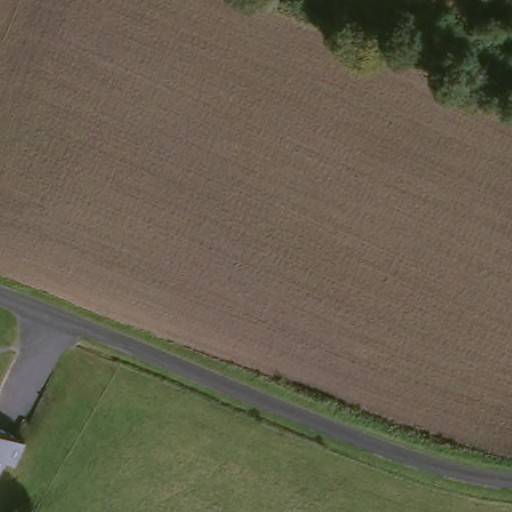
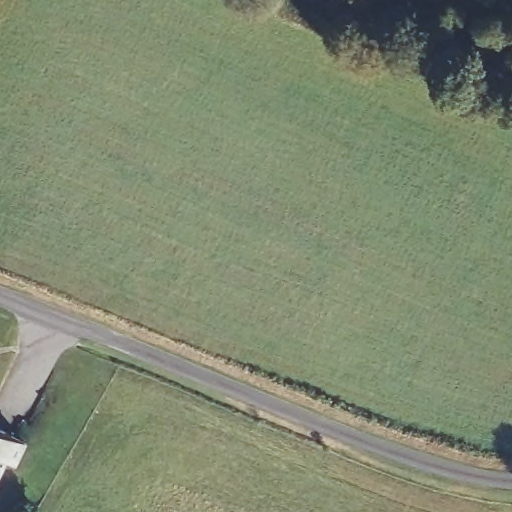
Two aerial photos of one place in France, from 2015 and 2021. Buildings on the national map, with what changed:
unchanged [(11,459),(2,455),(0,460),(0,428),(19,436),(11,459)]

